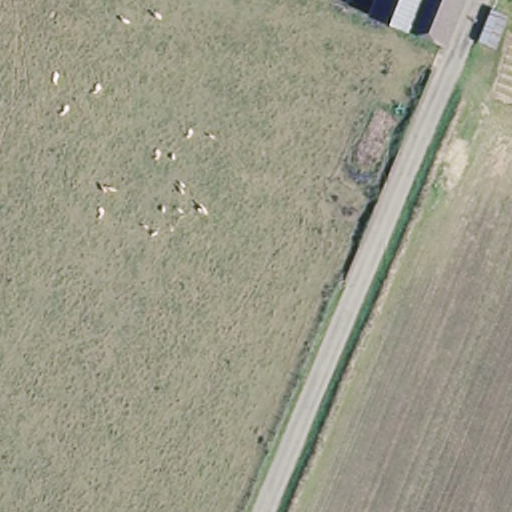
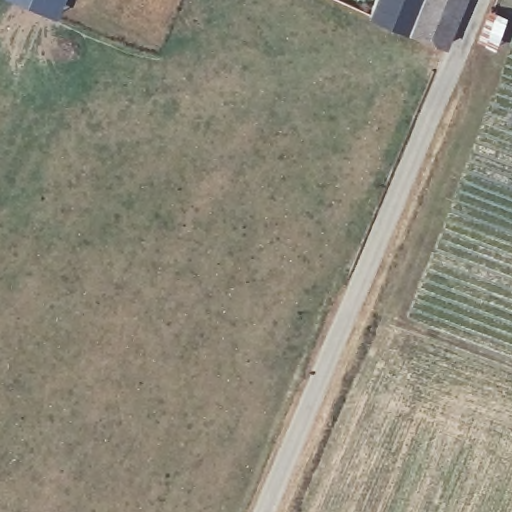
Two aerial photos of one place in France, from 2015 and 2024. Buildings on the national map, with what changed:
new [(12,0),(62,0),(54,19),(12,0)]
unchanged [(378,0),(464,0),(445,46),(372,16),(373,13),(378,0)]

